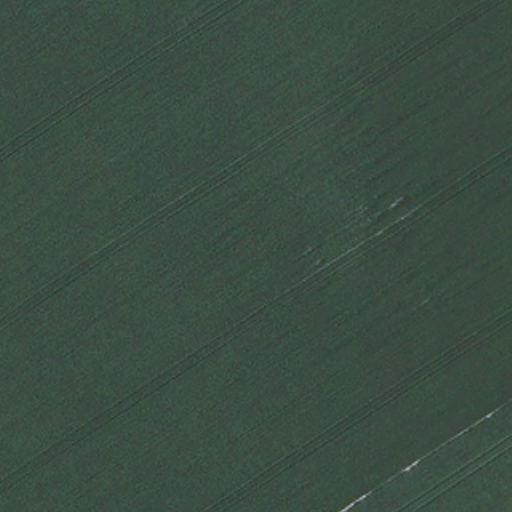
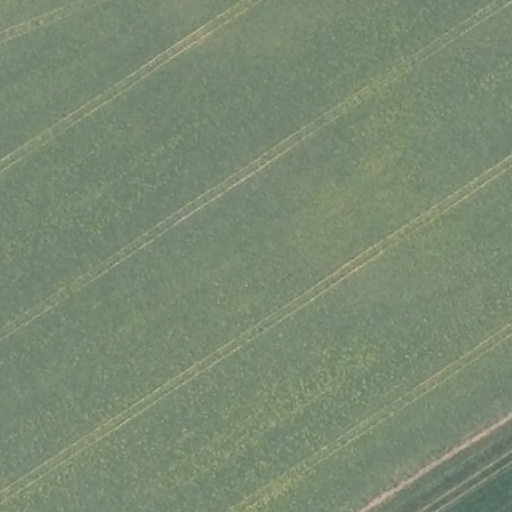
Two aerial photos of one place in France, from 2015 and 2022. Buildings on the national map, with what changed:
[]

